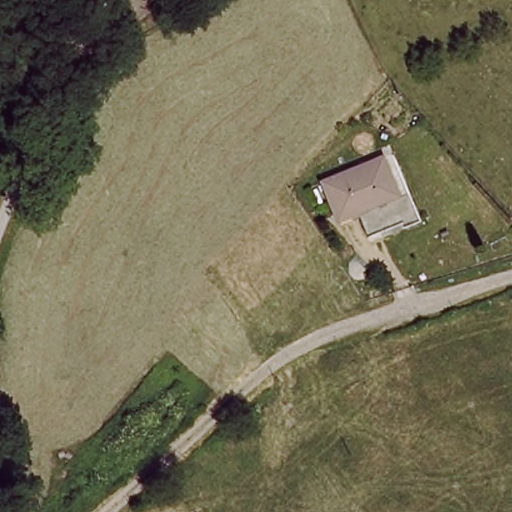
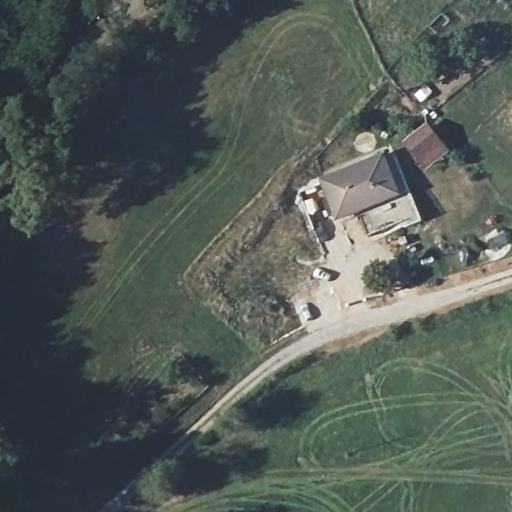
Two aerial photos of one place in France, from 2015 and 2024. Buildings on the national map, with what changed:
new [(407,143),(425,126),(439,141),(446,149),(426,166),(420,159),(407,143)]
unchanged [(320,174),(381,149),(397,188),(407,184),(419,215),(401,223),(400,219),(362,233),(355,209),(335,216),(320,174)]

